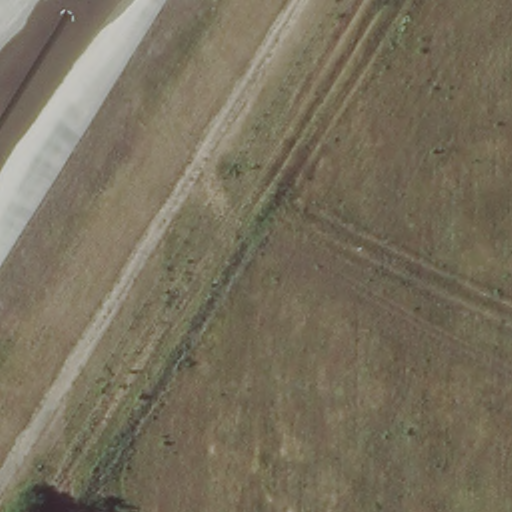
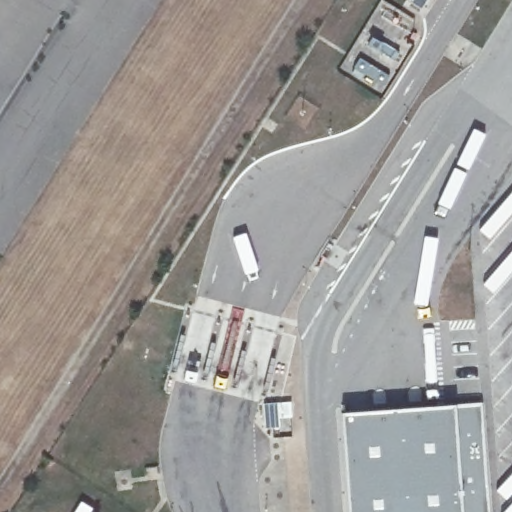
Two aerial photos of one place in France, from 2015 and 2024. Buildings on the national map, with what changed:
new [(484,402),(491,512),(349,512),(341,412),(456,405),(484,402)]

